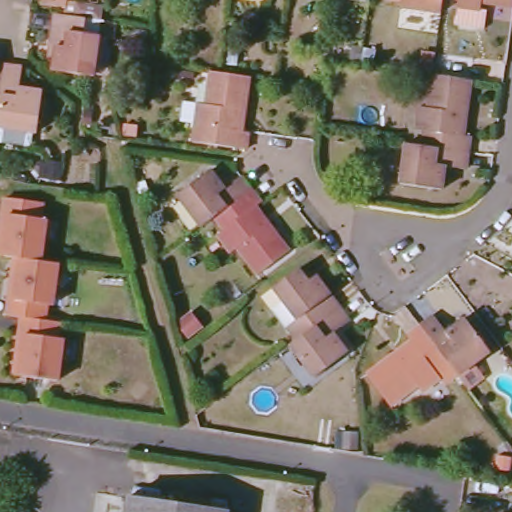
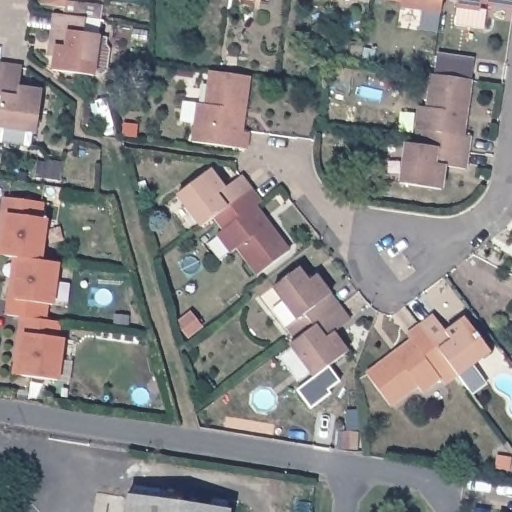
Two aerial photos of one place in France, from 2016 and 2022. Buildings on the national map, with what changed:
unchanged [(446,13),(408,6),(409,0),(448,0),(446,13)]
unchanged [(490,28),(460,24),(463,5),(464,0),(512,0),(512,5),(487,1),(486,8),(492,9),(490,28)]
unchanged [(90,15),(87,31),(102,34),(96,71),(56,64),(63,30),(56,29),(60,10),(90,15)]
unchanged [(418,134),(421,109),(428,111),(433,77),(436,55),(475,60),(472,82),(462,141),(470,142),(467,155),(424,148),(426,135),(418,134)]
unchanged [(0,105),(0,67),(5,68),(0,105)]
unchanged [(23,92),(42,96),(37,138),(0,132),(0,105),(5,68),(25,71),(23,92)]
unchanged [(246,151),(235,150),(193,145),(200,108),(207,109),(213,76),(223,77),(252,81),(243,137),(248,138),(246,151)]
unchanged [(465,172),(446,169),(443,194),(400,188),(407,145),(424,148),(467,155),(465,172)]
unchanged [(204,226),(180,195),(212,172),(226,191),(243,178),(252,189),(214,219),(204,226)]
unchanged [(262,203),(257,206),(291,251),(262,276),(241,248),(233,254),(220,236),(225,232),(214,219),(252,189),(262,203)]
unchanged [(5,256),(15,202),(55,209),(52,223),(58,224),(51,265),(27,261),(5,256)]
unchanged [(13,316),(20,279),(24,280),(27,261),(51,265),(68,268),(60,310),(56,309),(53,324),(30,320),(13,316)]
unchanged [(310,315),(301,323),(278,292),(306,271),(313,280),(320,275),(345,306),(318,327),(310,315)]
unchanged [(357,322),(341,334),(354,350),(321,375),(297,344),(318,327),(345,306),(357,322)]
unchanged [(470,387),(461,375),(452,363),(425,326),(440,315),(453,332),(470,319),(493,350),(476,364),(485,376),(470,387)]
unchanged [(75,328),(65,384),(27,377),(33,344),(26,343),(30,320),(53,324),(75,328)]
unchanged [(443,370),(439,381),(427,390),(422,384),(396,404),(373,374),(416,342),(412,336),(425,326),(452,363),(443,370)]
unchanged [(229,512),(131,512),(133,497),(229,512)]

